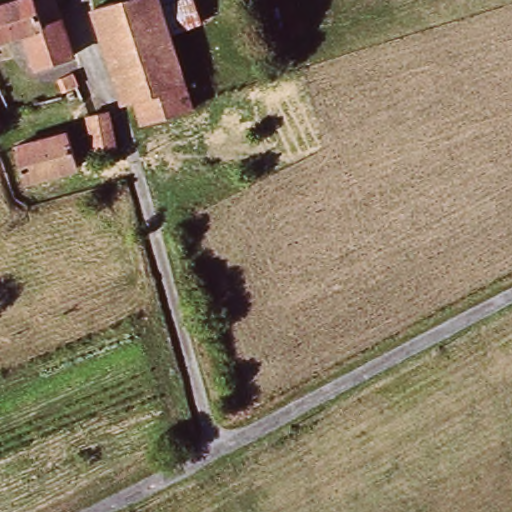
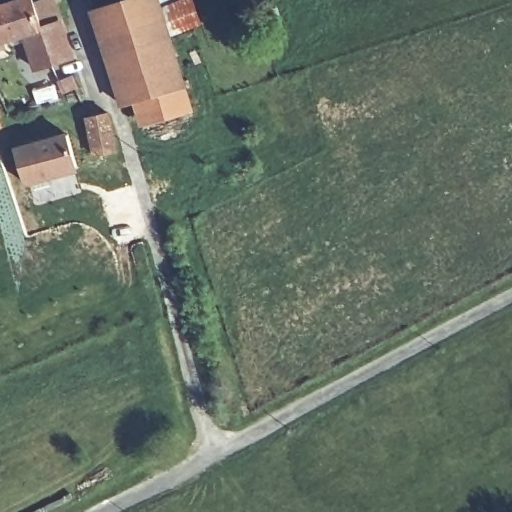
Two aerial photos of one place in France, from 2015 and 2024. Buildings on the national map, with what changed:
unchanged [(47,0),(48,0),(50,0),(64,0),(75,29),(83,48),(49,62),(37,31),(0,45),(0,5),(16,0),(47,0)]
unchanged [(110,50),(99,8),(118,0),(163,0),(172,30),(110,50)]
unchanged [(187,82),(141,97),(126,102),(110,50),(172,30),(187,82)]
unchanged [(195,110),(151,126),(141,97),(187,82),(195,110)]
unchanged [(104,154),(90,115),(94,113),(110,107),(124,146),(104,154)]
unchanged [(27,146),(73,130),(84,165),(38,182),(27,146)]

